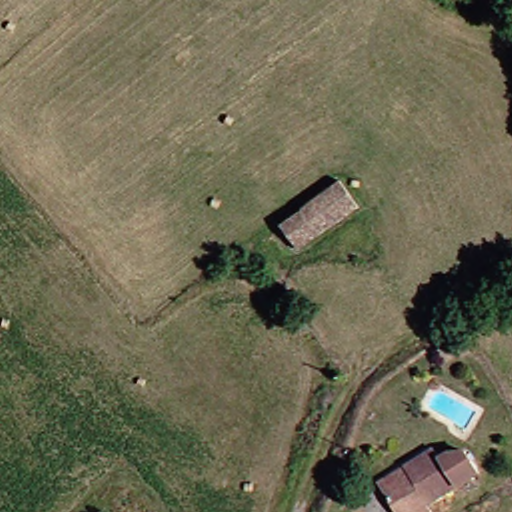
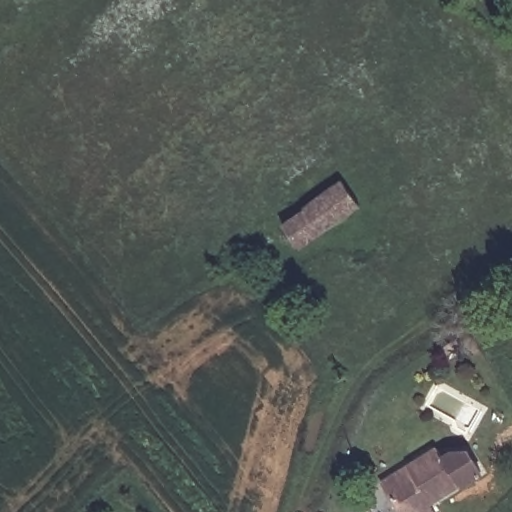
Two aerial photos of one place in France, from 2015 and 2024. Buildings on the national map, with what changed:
unchanged [(290,258),(275,239),(270,234),(343,176),(360,199),(290,258)]
unchanged [(420,444),(429,455),(451,446),(467,473),(426,500),(401,468),(396,461),(420,444)]
unchanged [(425,502),(432,512),(394,512),(375,485),(401,468),(426,500),(425,502)]

